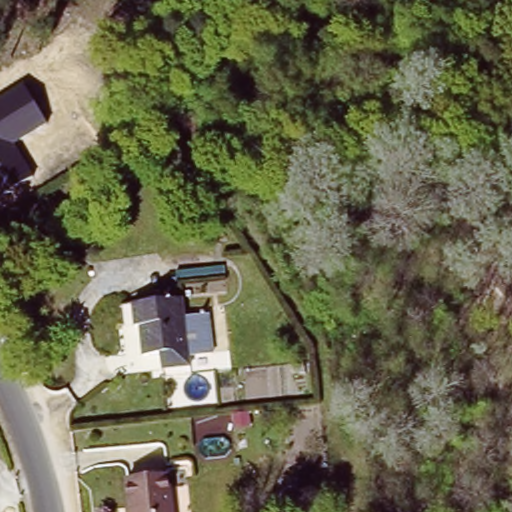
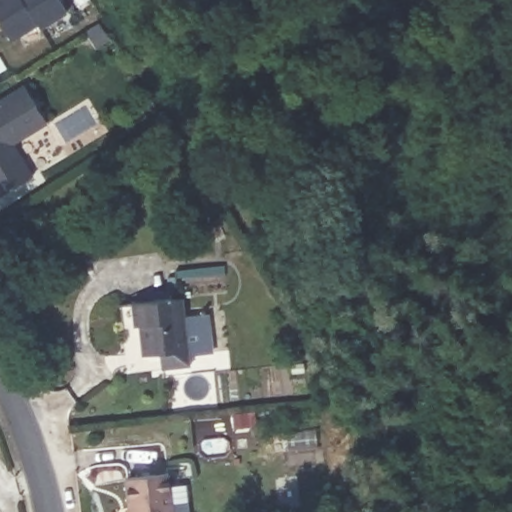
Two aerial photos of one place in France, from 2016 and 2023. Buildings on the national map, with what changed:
new [(41,28),(38,24),(12,40),(0,20),(0,0),(59,0),(66,13),(41,28)]
unchanged [(26,86),(48,124),(13,144),(33,177),(0,194),(0,101),(26,86)]
unchanged [(180,298),(184,315),(211,315),(216,358),(190,360),(190,372),(144,373),(131,306),(180,298)]
unchanged [(172,512),(125,512),(123,479),(170,477),(172,512)]

